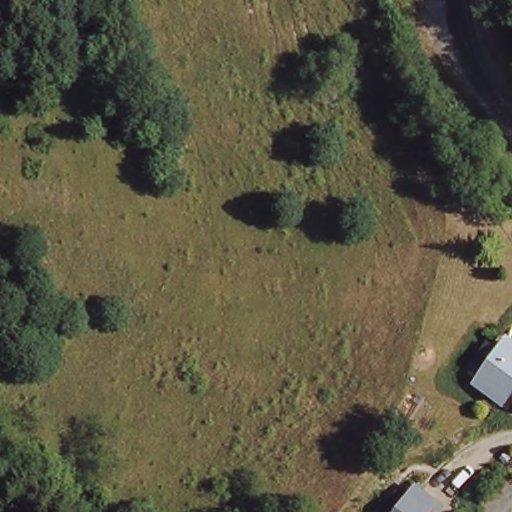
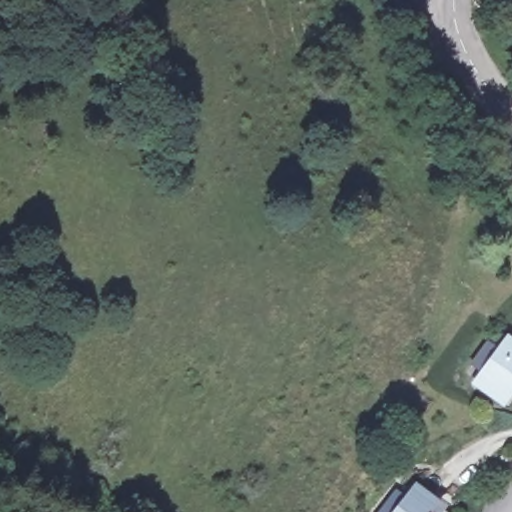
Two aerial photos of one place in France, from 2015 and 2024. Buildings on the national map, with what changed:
unchanged [(497,401),(471,378),(504,340),(512,347),(512,384),(497,401)]
unchanged [(438,508),(434,512),(392,512),(411,488),(438,508)]

